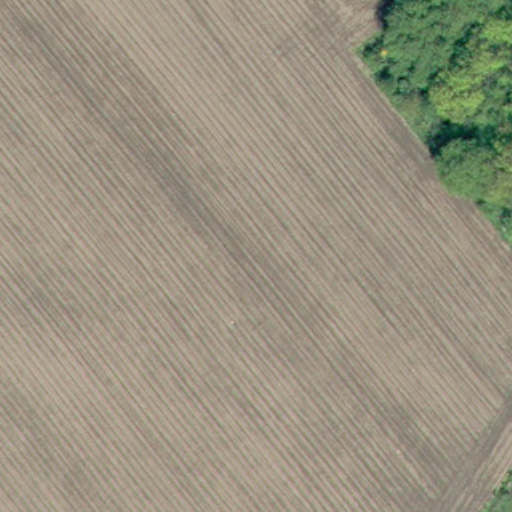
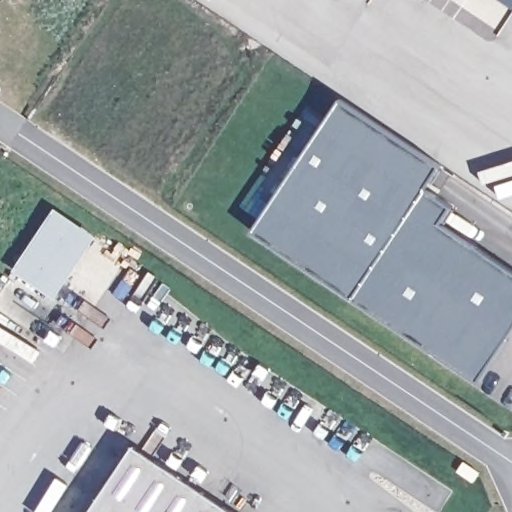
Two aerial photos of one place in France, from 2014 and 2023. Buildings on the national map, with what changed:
new [(9,1),(7,0),(10,0),(9,1)]
new [(499,0),(512,0),(512,8),(499,0)]
new [(438,166),(423,190),(450,207),(439,225),(512,273),(512,329),(476,383),(249,233),(337,100),(438,166)]
new [(55,298),(12,271),(55,207),(97,235),(55,298)]
new [(89,512),(134,444),(236,512),(89,512)]

